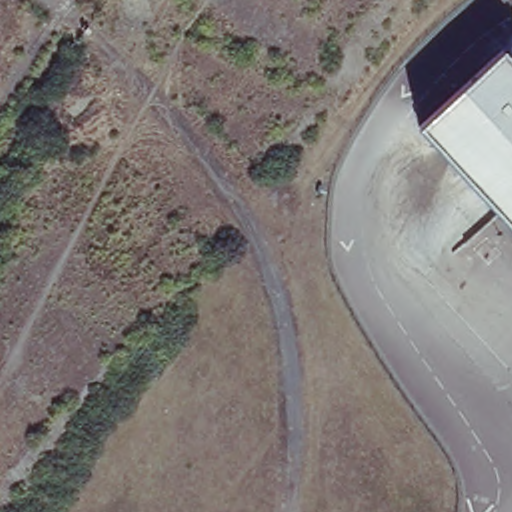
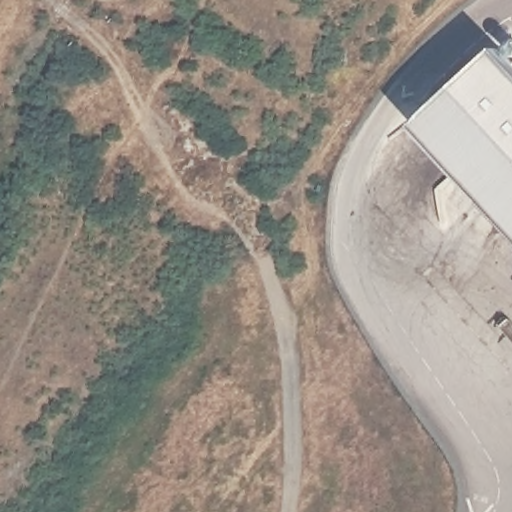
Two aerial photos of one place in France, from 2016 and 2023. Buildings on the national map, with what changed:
unchanged [(502,50),(512,60),(512,229),(418,128),(502,50)]

